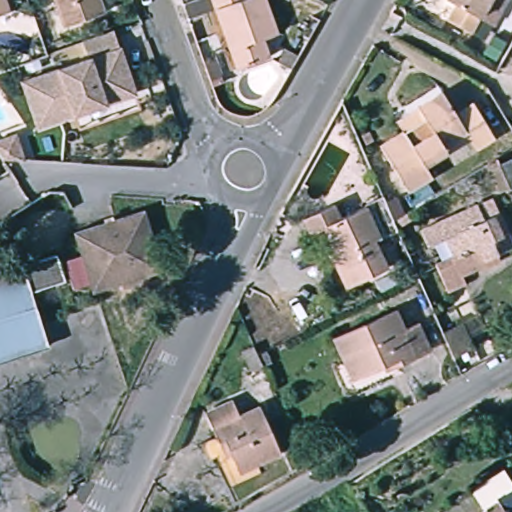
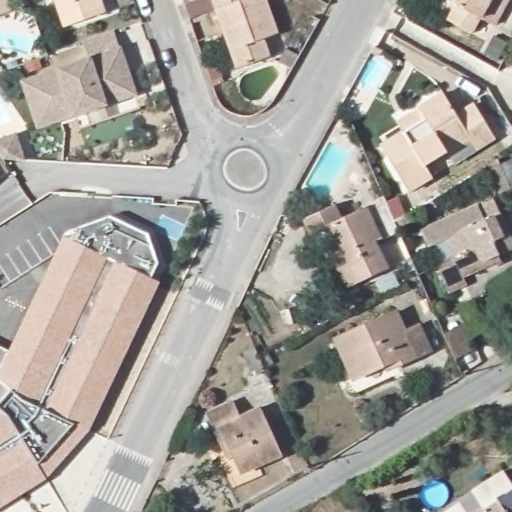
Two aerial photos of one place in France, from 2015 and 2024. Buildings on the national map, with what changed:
unchanged [(0,14),(0,0),(4,0),(9,11),(0,14)]
unchanged [(59,0),(102,0),(64,12),(59,0)]
unchanged [(261,39),(268,58),(235,69),(210,0),(263,0),(276,34),(261,39)]
unchanged [(450,22),(459,5),(451,1),(451,0),(495,0),(475,36),(450,22)]
unchanged [(125,93),(73,111),(35,123),(21,76),(86,55),(81,38),(113,26),(125,60),(135,90),(125,93)]
unchanged [(471,106),(493,141),(452,166),(446,156),(423,170),(429,179),(406,193),(379,149),(402,136),(395,124),(417,112),(442,97),(454,117),(471,106)]
unchanged [(3,159),(0,155),(0,142),(16,137),(24,160),(3,159)]
unchanged [(490,173),(504,166),(512,185),(512,198),(503,202),(500,195),(489,200),(479,178),(490,173)]
unchanged [(476,278),(474,273),(450,284),(453,292),(437,299),(425,272),(442,265),(433,246),(417,254),(410,238),(483,206),(505,255),(486,263),(490,271),(476,278)]
unchanged [(339,223),(364,210),(379,241),(373,244),(386,271),(345,291),(338,276),(343,274),(323,231),(310,238),(302,223),(332,208),(339,223)]
demolished [(162,272),(92,292),(74,234),(144,212),(162,272)]
unchanged [(410,219),(397,226),(395,222),(394,219),(406,212),(410,219)]
new [(8,352),(64,236),(71,239),(78,226),(110,215),(147,234),(157,265),(151,279),(160,282),(89,431),(47,479),(0,508),(0,347),(8,352)]
demolished [(67,282),(35,292),(52,348),(0,364),(0,278),(27,269),(28,272),(31,270),(30,264),(60,255),(67,282)]
unchanged [(399,339),(412,333),(424,359),(385,377),(380,379),(378,374),(346,388),(339,371),(329,348),(390,320),(399,339)]
unchanged [(476,347),(455,357),(453,353),(444,332),(463,322),(476,347)]
unchanged [(241,350),(254,345),(257,353),(265,349),(270,361),(262,365),(250,370),(241,350)]
unchanged [(243,420),(263,411),(285,459),(263,469),(244,478),(236,459),(231,462),(224,447),(211,417),(236,405),(243,420)]
unchanged [(482,510),(472,495),(500,475),(512,494),(512,512),(480,512),(482,510)]

